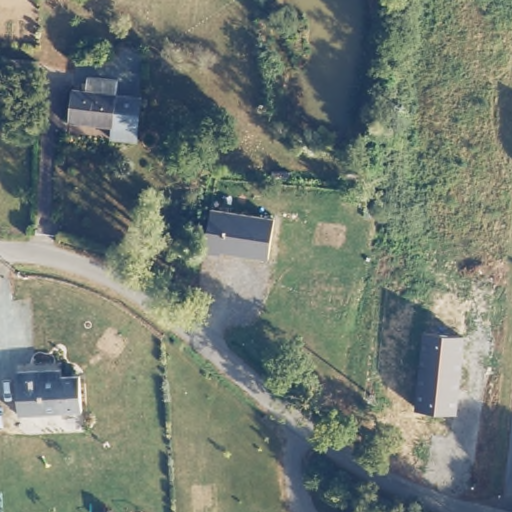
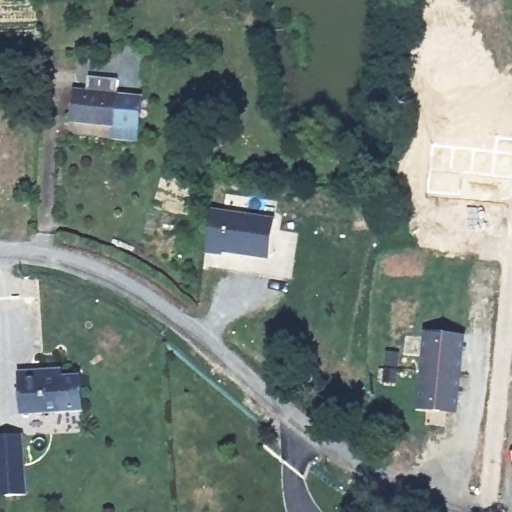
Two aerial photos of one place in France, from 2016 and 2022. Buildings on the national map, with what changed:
unchanged [(43,80),(5,77),(6,60),(44,62),(43,80)]
unchanged [(87,86),(89,71),(119,75),(117,90),(142,94),(137,136),(112,133),(114,120),(71,115),(74,85),(87,86)]
unchanged [(203,250),(212,210),(275,220),(269,259),(203,250)]
unchanged [(467,342),(456,417),(418,413),(429,338),(467,342)]
unchanged [(61,374),(62,380),(79,378),(81,415),(17,419),(15,375),(61,374)]
new [(23,433),(27,495),(0,497),(0,435),(23,433)]

